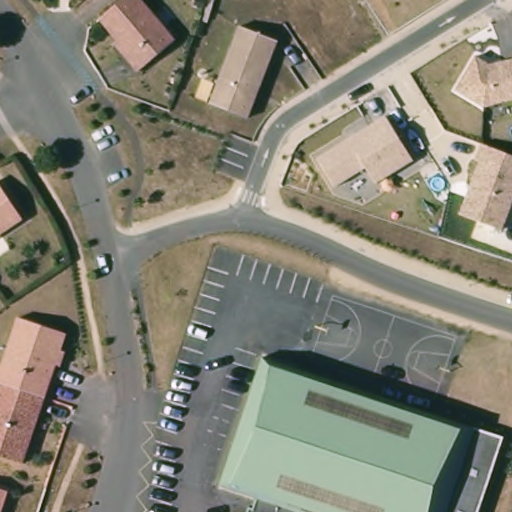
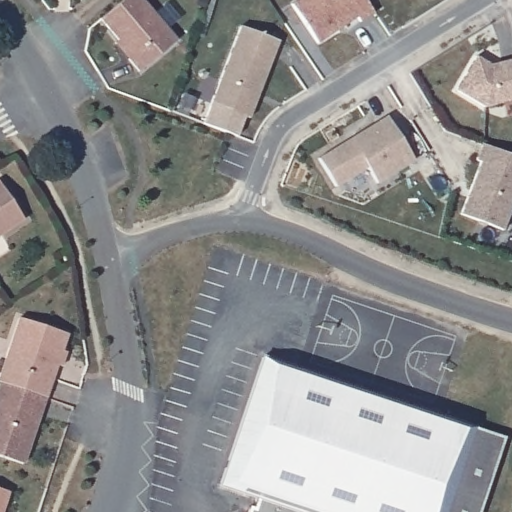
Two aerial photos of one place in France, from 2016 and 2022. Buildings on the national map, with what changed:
unchanged [(100,22),(128,0),(138,0),(175,45),(137,76),(127,63),(114,47),(117,44),(100,22)]
new [(375,13),(361,23),(358,18),(318,44),(292,5),(301,0),(366,0),(375,13)]
unchanged [(240,25),(277,39),(250,116),(211,102),(240,25)]
unchanged [(490,63),(512,58),(512,99),(485,106),(456,89),(476,55),(490,63)]
unchanged [(319,157),(387,114),(413,156),(375,181),(366,167),(335,185),(319,157)]
unchanged [(475,158),(481,142),(512,154),(512,208),(505,228),(460,212),(480,160),(475,158)]
unchanged [(24,223),(0,238),(0,186),(24,223)]
unchanged [(59,371),(54,369),(43,402),(0,388),(0,373),(16,322),(64,338),(59,355),(63,356),(59,371)]
unchanged [(481,438),(452,512),(246,512),(249,505),(252,506),(256,496),(225,483),(273,357),(481,438)]
unchanged [(43,402),(21,468),(0,462),(0,388),(43,402)]
unchanged [(479,512),(452,512),(481,438),(502,442),(479,512)]
unchanged [(0,502),(0,489),(4,490),(0,502)]

